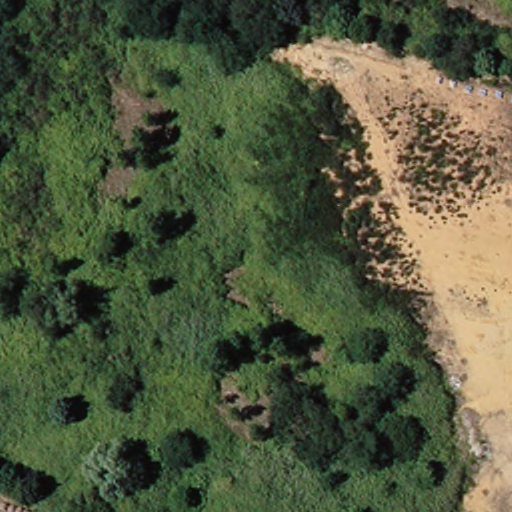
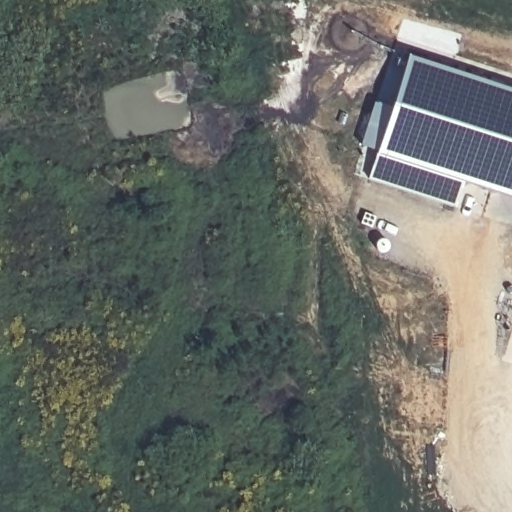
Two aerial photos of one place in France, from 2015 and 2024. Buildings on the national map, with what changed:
new [(375,103),(392,108),(409,57),(512,90),(512,199),(464,183),(456,209),(369,181),(378,152),(360,146),(375,103)]

